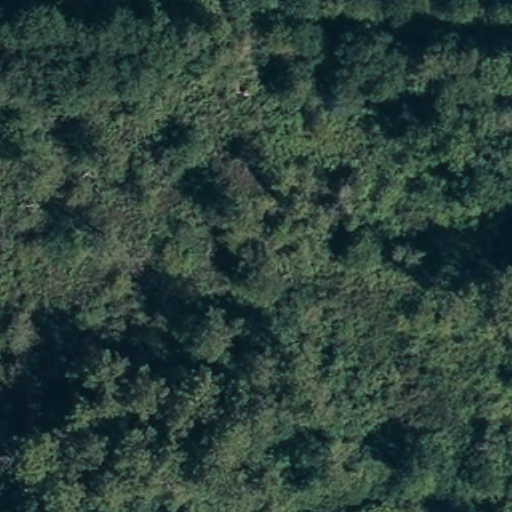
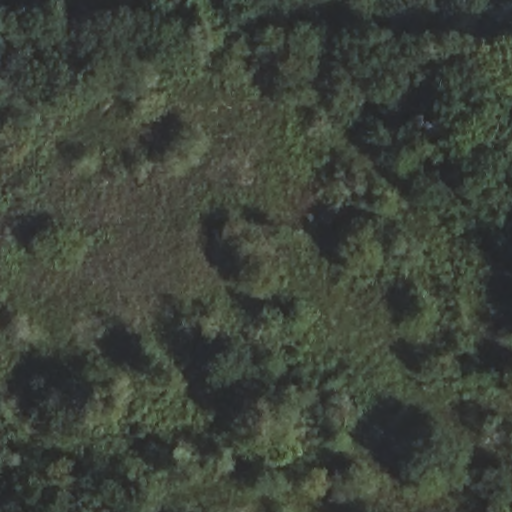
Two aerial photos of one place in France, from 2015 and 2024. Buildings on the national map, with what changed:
[]

